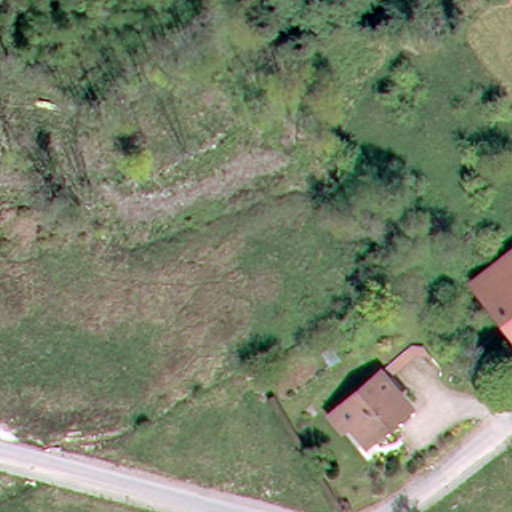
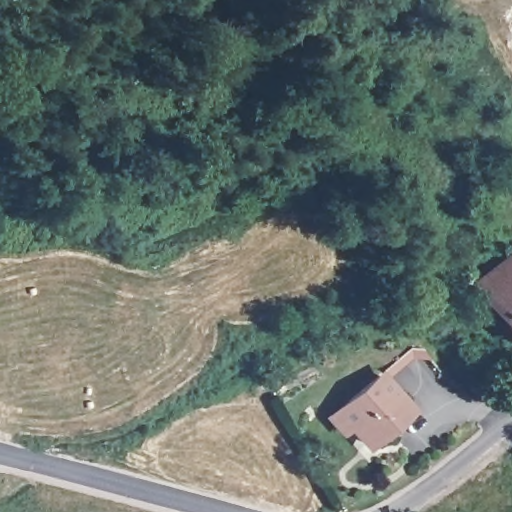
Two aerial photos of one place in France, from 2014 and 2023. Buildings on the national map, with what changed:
unchanged [(512,252),(512,327),(476,281),(512,252)]
unchanged [(327,416),(338,408),(379,372),(407,405),(364,443),(351,426),(340,434),(327,416)]

